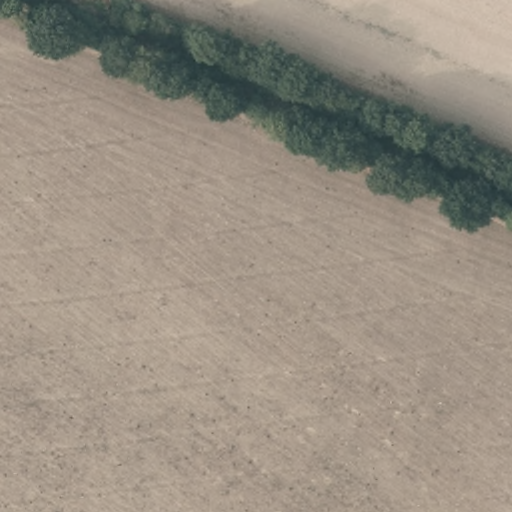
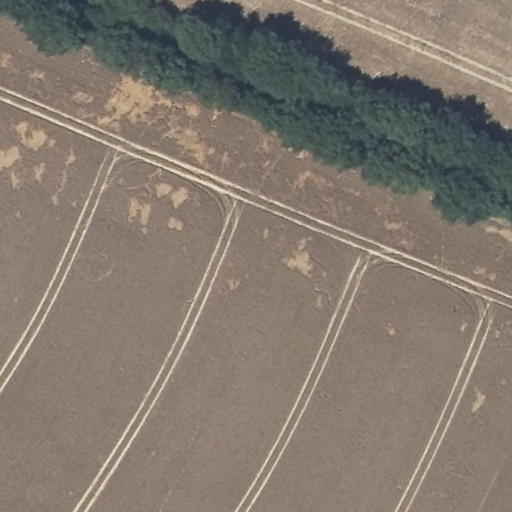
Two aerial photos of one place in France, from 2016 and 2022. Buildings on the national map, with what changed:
[]

